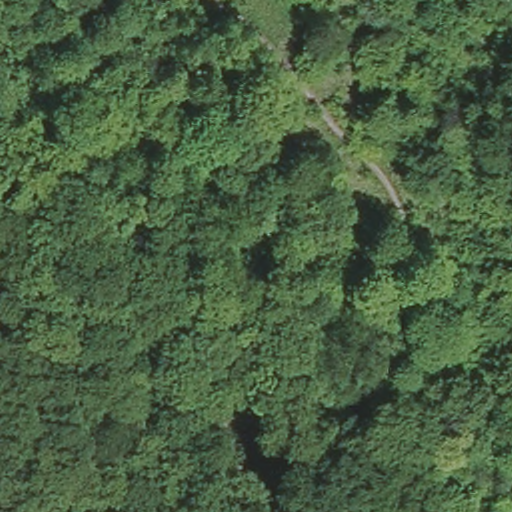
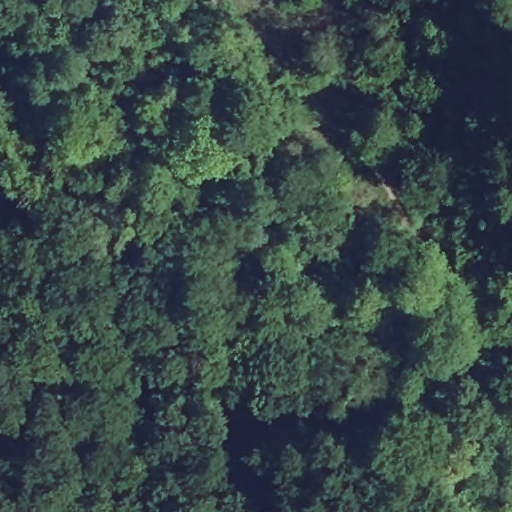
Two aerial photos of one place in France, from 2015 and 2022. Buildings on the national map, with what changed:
[]

